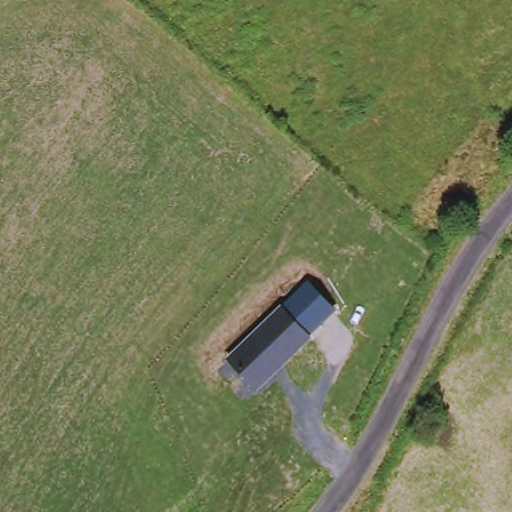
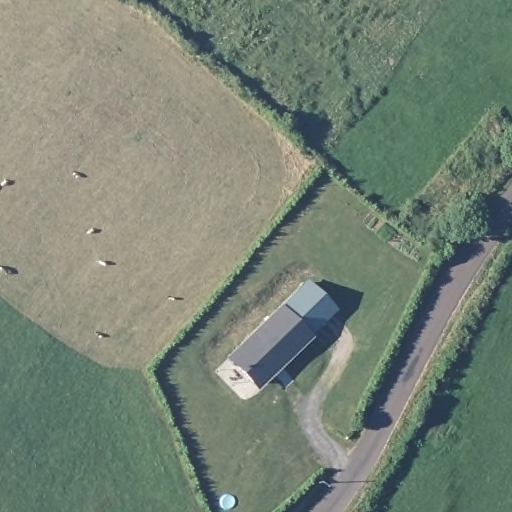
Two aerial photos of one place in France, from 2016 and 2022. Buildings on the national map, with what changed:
unchanged [(312,337),(257,391),(226,358),(281,305),(307,281),(336,311),(312,337)]

